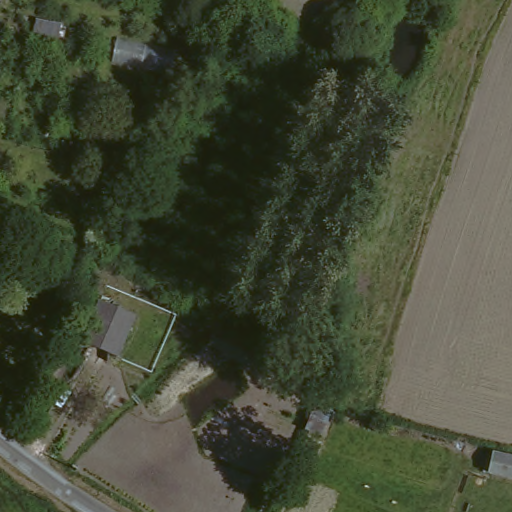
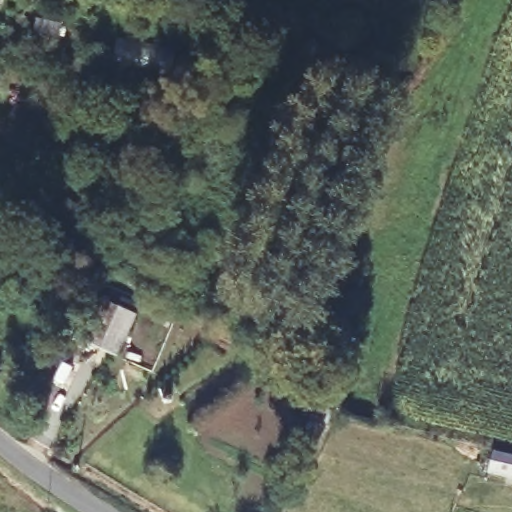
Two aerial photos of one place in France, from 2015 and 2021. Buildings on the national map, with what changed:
unchanged [(132,296),(128,307),(101,297),(105,286),(132,296)]
unchanged [(120,358),(85,344),(101,302),(137,316),(120,358)]
unchanged [(512,481),(485,473),(491,452),(512,458),(512,481)]

